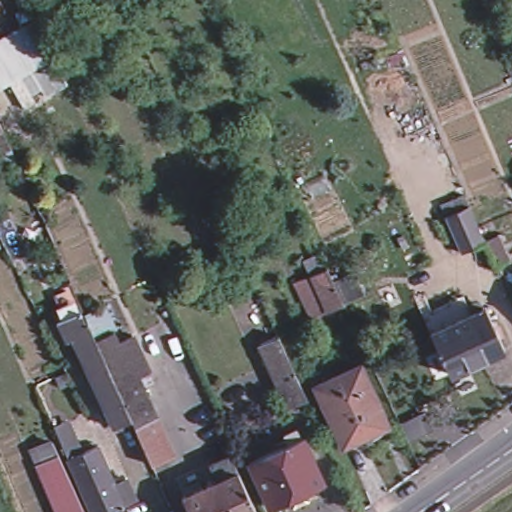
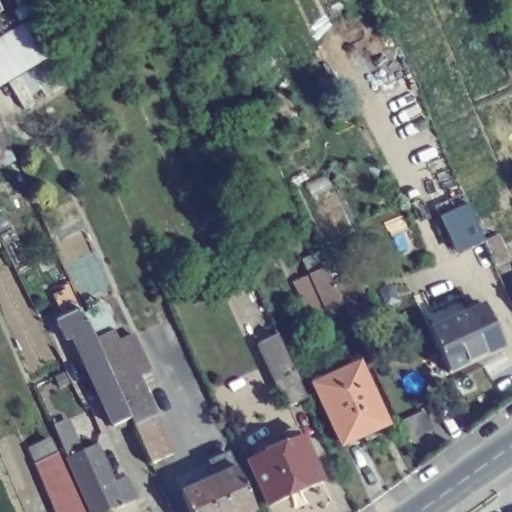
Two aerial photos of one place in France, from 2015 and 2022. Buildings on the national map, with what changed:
unchanged [(46,63),(0,91),(0,40),(28,25),(46,63)]
unchanged [(462,196),(482,242),(460,252),(440,206),(462,196)]
unchanged [(501,286),(495,273),(482,242),(497,236),(511,266),(512,270),(512,281),(501,286)]
unchanged [(321,314),(302,273),(296,260),(315,252),(321,264),(340,306),(321,314)]
unchanged [(112,391),(127,425),(107,434),(47,301),(67,291),(94,351),(112,391)]
unchanged [(505,349),(484,359),(485,365),(476,369),(470,365),(449,375),(430,333),(486,307),(505,349)]
unchanged [(130,334),(141,358),(149,375),(134,382),(112,391),(94,351),(130,334)]
unchanged [(309,405),(289,414),(259,350),(279,341),(309,405)]
unchanged [(387,426),(341,447),(315,387),(362,367),(387,426)]
unchanged [(112,391),(134,382),(169,462),(147,471),(127,425),(112,391)]
unchanged [(124,505),(109,512),(92,512),(69,461),(61,441),(54,425),(67,419),(74,435),(82,454),(99,447),(115,485),(127,480),(135,500),(124,505)]
unchanged [(403,432),(427,421),(435,437),(411,448),(403,432)]
unchanged [(324,483),(269,509),(249,465),(304,439),(324,483)]
unchanged [(40,475),(35,463),(58,453),(64,465),(85,512),(57,512),(40,475)]
unchanged [(177,503),(206,489),(213,486),(207,471),(225,462),(232,477),(233,476),(249,512),(181,512),(177,503)]

